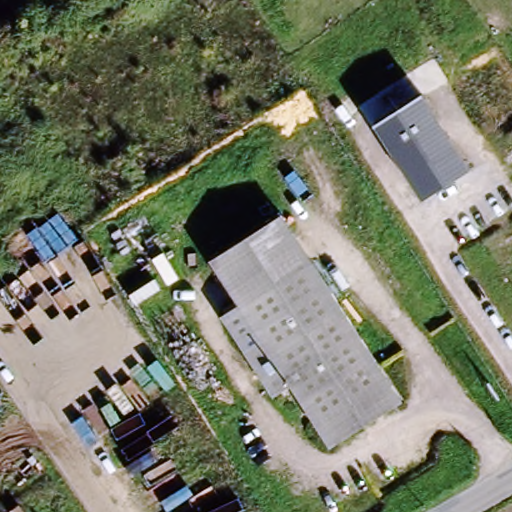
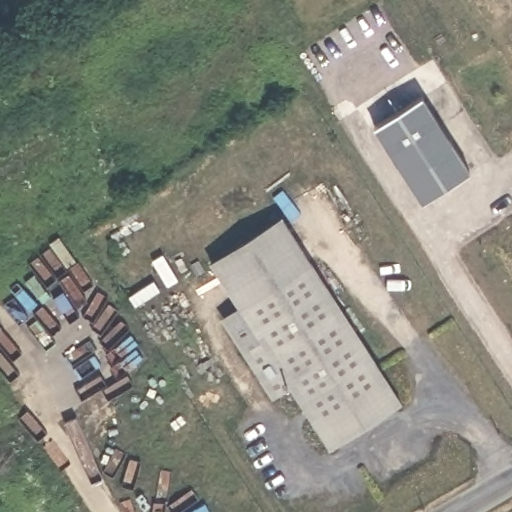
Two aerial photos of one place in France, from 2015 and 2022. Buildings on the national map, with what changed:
unchanged [(372,127),(420,97),(470,172),(421,202),(372,127)]
unchanged [(215,258),(285,220),(312,269),(245,308),(215,258)]
unchanged [(393,410),(327,448),(292,388),(275,398),(248,354),(225,322),(245,308),(312,269),(393,410)]

